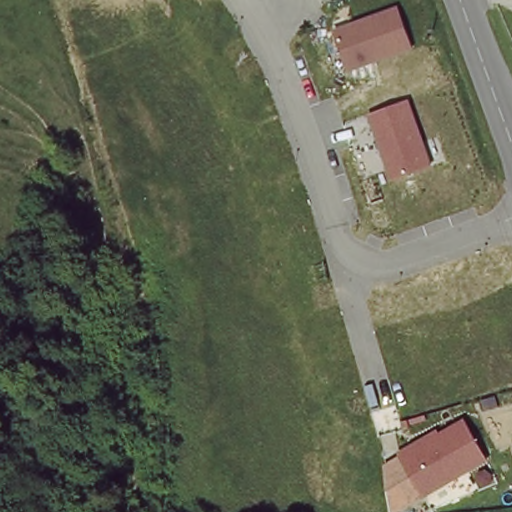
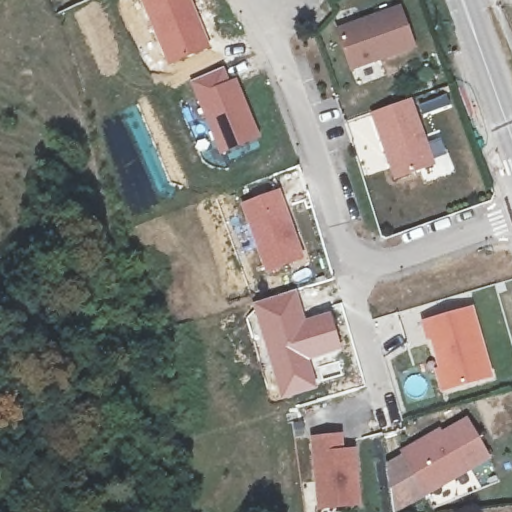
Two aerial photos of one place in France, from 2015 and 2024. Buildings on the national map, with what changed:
new [(211,47),(167,66),(139,0),(192,0),(211,47)]
unchanged [(337,30),(403,7),(416,47),(353,71),(337,30)]
new [(223,68),(228,82),(235,80),(261,138),(220,156),(190,81),(223,68)]
unchanged [(373,113),(413,101),(435,166),(398,180),(373,113)]
new [(279,189),(304,258),(266,273),(240,204),(279,189)]
new [(297,290),(306,319),(331,312),(342,352),(312,362),(318,390),(278,400),(250,303),(297,290)]
new [(476,369),(434,382),(414,319),(459,306),(476,369)]
unchanged [(400,451),(439,427),(442,433),(468,418),(492,458),(428,496),(400,451)]
new [(329,433),(329,450),(340,450),(341,505),(301,506),(302,433),(329,433)]
new [(400,512),(382,512),(377,465),(400,451),(428,496),(400,512)]

